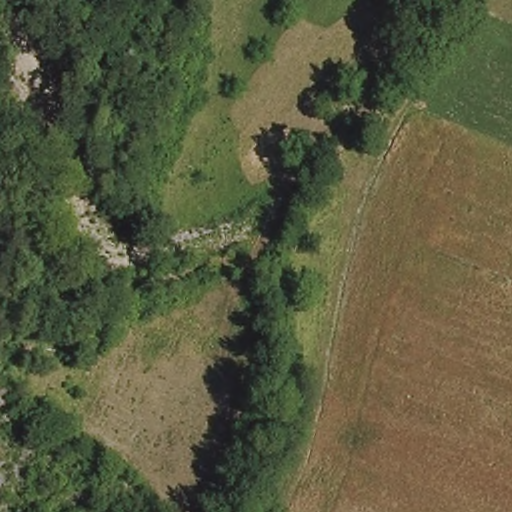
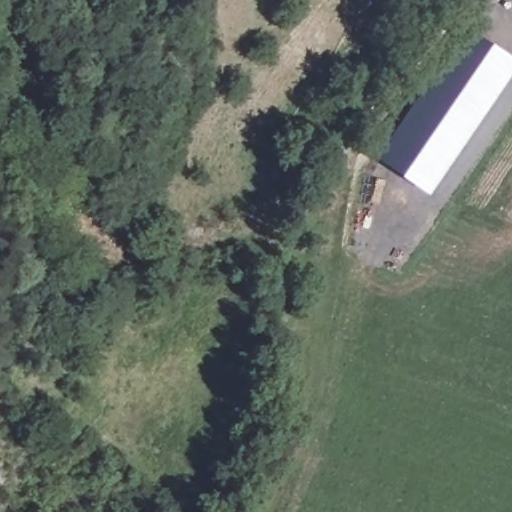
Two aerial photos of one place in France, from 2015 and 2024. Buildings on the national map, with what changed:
new [(384,165),(472,33),(512,59),(512,75),(430,195),(384,165)]

